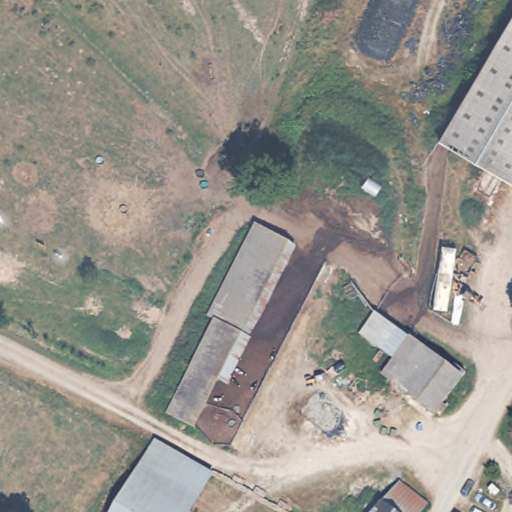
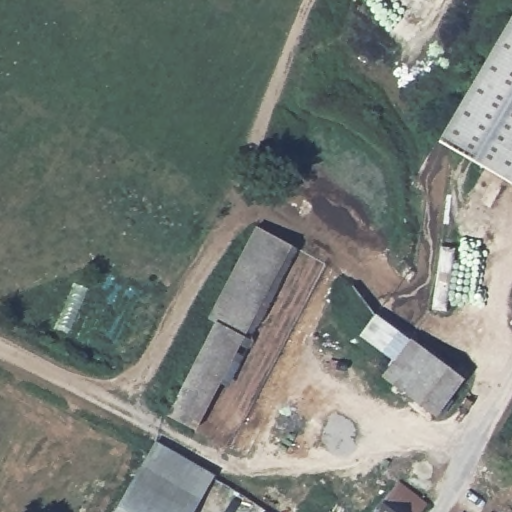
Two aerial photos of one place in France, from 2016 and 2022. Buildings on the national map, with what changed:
unchanged [(437,140),(512,9),(512,183),(437,140)]
unchanged [(194,427),(167,413),(217,319),(209,315),(254,228),(295,249),(224,386),(218,383),(194,427)]
unchanged [(461,377),(433,414),(382,376),(409,339),(461,377)]
unchanged [(156,441),(212,475),(190,512),(114,512),(156,441)]
unchanged [(403,476),(431,498),(418,512),(373,512),(403,476)]
unchanged [(358,510),(360,512),(356,512),(358,510)]

